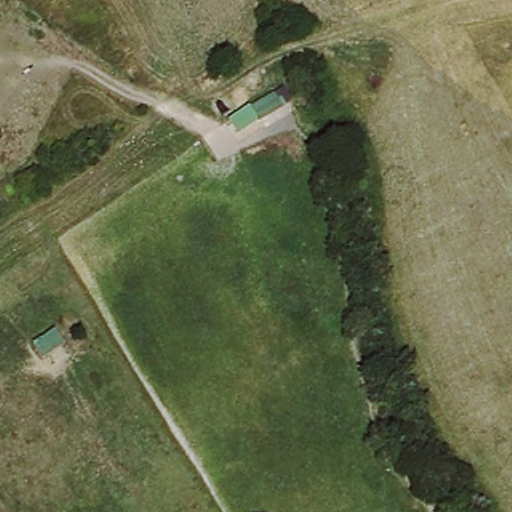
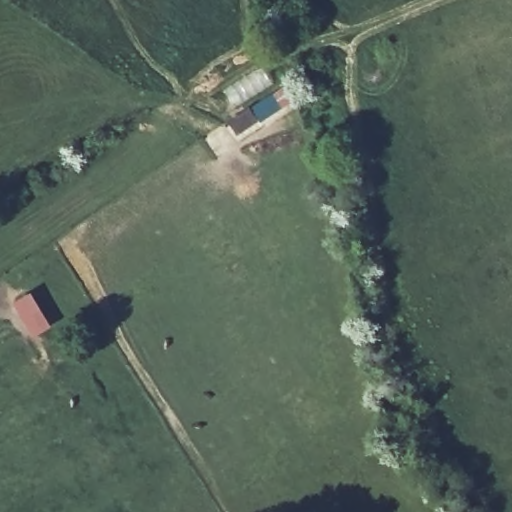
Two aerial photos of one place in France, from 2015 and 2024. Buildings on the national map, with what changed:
unchanged [(280,89),(288,106),(255,124),(246,108),(280,89)]
new [(29,293),(49,327),(32,337),(12,303),(29,293)]

